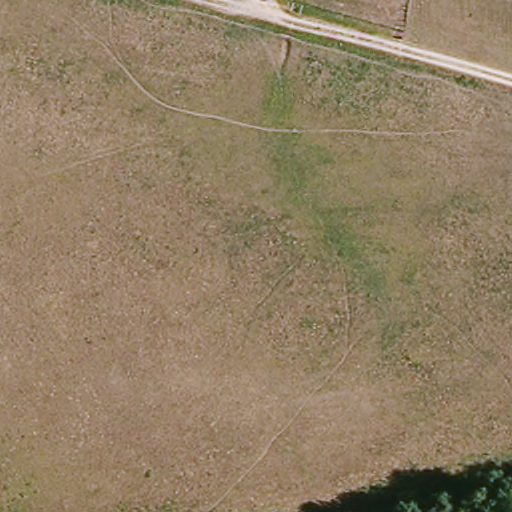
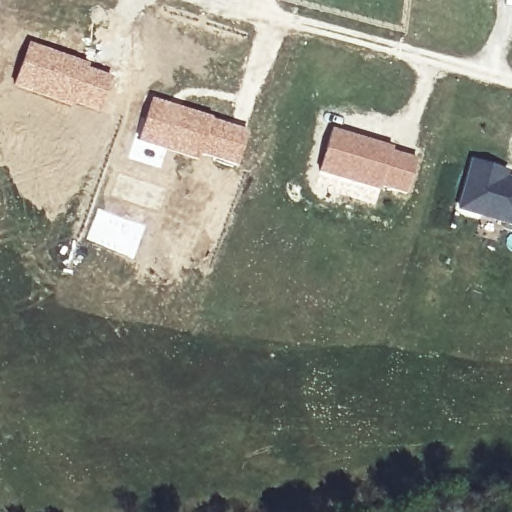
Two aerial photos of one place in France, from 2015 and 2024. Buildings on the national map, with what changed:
new [(28,42),(77,60),(112,79),(97,115),(12,86),(28,42)]
new [(151,98),(204,115),(247,131),(237,166),(199,155),(197,160),(137,140),(151,98)]
new [(331,129),(381,144),(418,161),(406,195),(380,187),(378,192),(317,174),(331,129)]
new [(471,156),(512,171),(512,226),(455,211),(471,156)]

